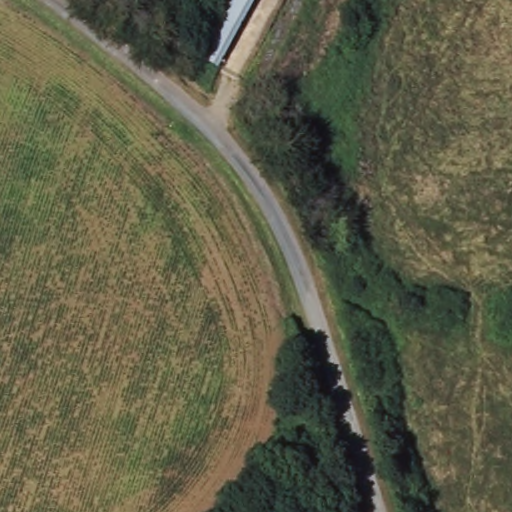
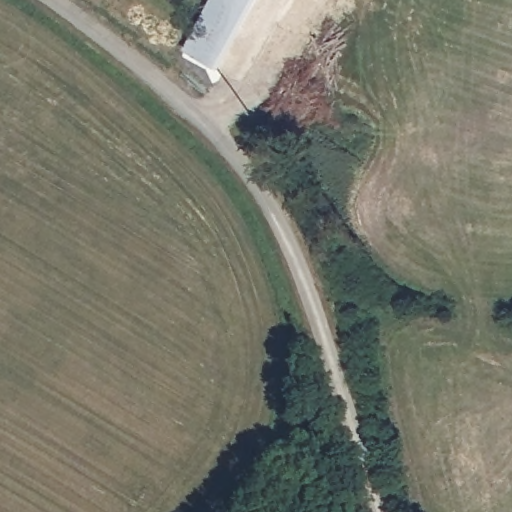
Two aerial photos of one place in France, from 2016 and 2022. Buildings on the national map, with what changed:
unchanged [(215,61),(185,45),(209,0),(248,0),(215,61)]

